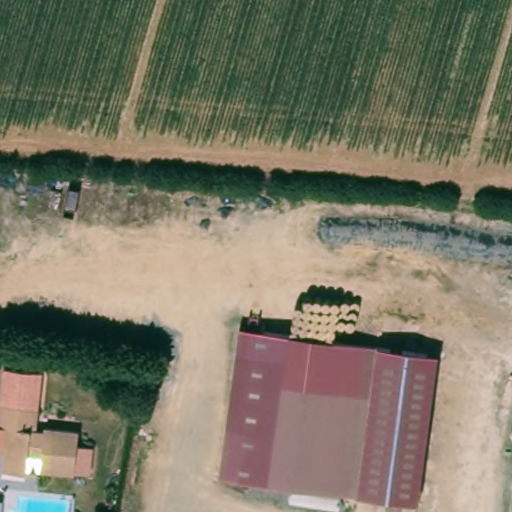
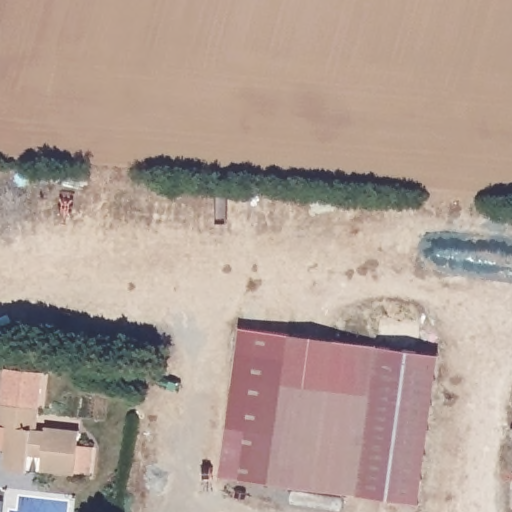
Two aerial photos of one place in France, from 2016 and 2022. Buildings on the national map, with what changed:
unchanged [(271,484),(286,360),(290,332),(375,343),(359,493),(271,484)]
unchanged [(441,352),(422,502),(359,493),(375,343),(441,352)]
unchanged [(223,477),(239,351),(286,360),(271,484),(223,477)]
unchanged [(35,427),(43,428),(43,425),(78,429),(77,443),(93,445),(90,475),(26,468),(25,473),(1,471),(4,450),(0,450),(0,393),(2,366),(41,370),(35,427)]

